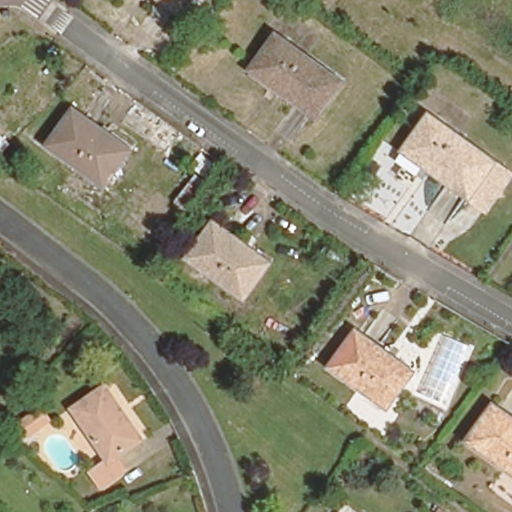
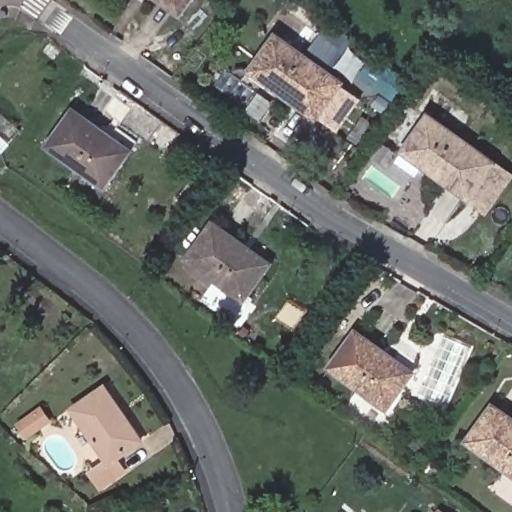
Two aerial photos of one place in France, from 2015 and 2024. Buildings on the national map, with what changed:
unchanged [(153,0),(189,0),(176,17),(153,0)]
unchanged [(256,71),(278,41),(341,87),(317,121),(281,95),(252,75),(256,71)]
unchanged [(50,145),(75,109),(102,129),(130,149),(127,152),(105,184),(50,145)]
unchanged [(412,155),(435,124),(498,172),(475,206),(437,179),(410,159),(412,155)]
unchanged [(189,262),(215,228),(243,249),(270,268),(267,272),(245,302),(189,262)]
unchanged [(331,371),(357,335),(385,354),(413,375),(411,378),(387,411),(331,371)]
unchanged [(137,439),(112,457),(121,470),(98,486),(87,471),(102,459),(68,407),(101,385),(137,439)]
unchanged [(495,403),(512,417),(512,472),(468,441),(495,403)]
unchanged [(47,427),(23,442),(14,428),(37,412),(47,427)]

